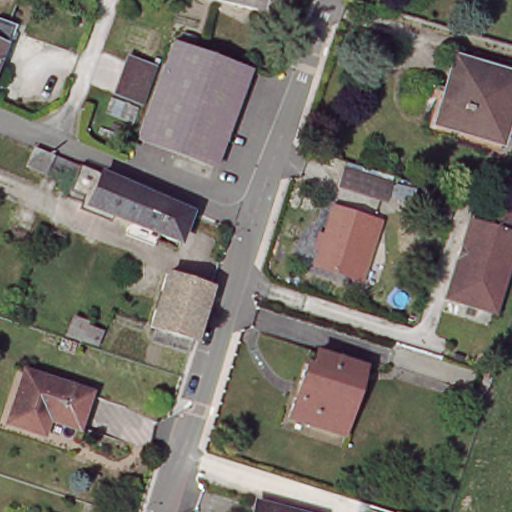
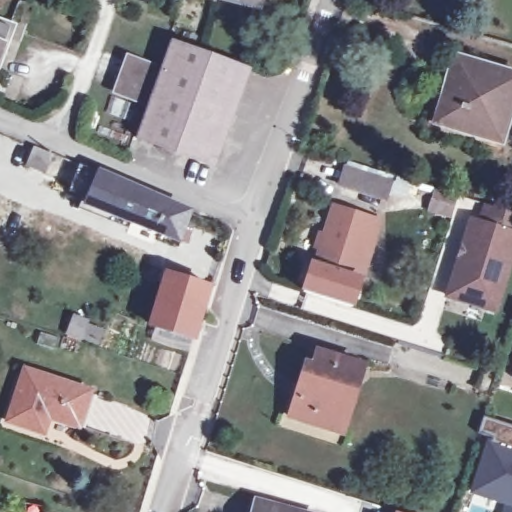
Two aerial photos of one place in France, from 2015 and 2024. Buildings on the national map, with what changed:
unchanged [(259,8),(229,0),(261,0),(259,8)]
unchanged [(12,22),(0,56),(0,17),(12,22)]
unchanged [(204,54),(251,71),(217,166),(140,138),(174,43),(204,54)]
unchanged [(118,89),(132,54),(159,64),(145,100),(118,89)]
unchanged [(484,137),(439,123),(459,56),(512,72),(512,110),(493,104),(484,137)]
unchanged [(55,156),(47,176),(26,168),(34,147),(55,156)]
unchanged [(185,189),(186,225),(84,186),(78,184),(80,178),(87,152),(185,189)]
unchanged [(345,168),(390,182),(385,197),(340,183),(345,168)]
unchanged [(318,265),(336,206),(375,218),(357,276),(318,265)]
unchanged [(441,302),(463,232),(470,227),(474,228),(480,208),(512,218),(512,244),(502,277),(489,317),(480,314),(441,302)]
unchanged [(152,326),(170,275),(209,288),(192,339),(152,326)]
unchanged [(297,396),(305,397),(309,382),(302,380),(307,363),(315,365),(319,351),(365,365),(359,383),(351,381),(336,429),(291,417),(297,396)]
unchanged [(89,395),(79,427),(50,416),(44,435),(6,420),(24,371),(89,395)]
new [(485,416),(512,425),(512,502),(477,491),(494,438),(479,433),(485,416)]
unchanged [(305,512),(257,512),(261,499),(305,512)]

